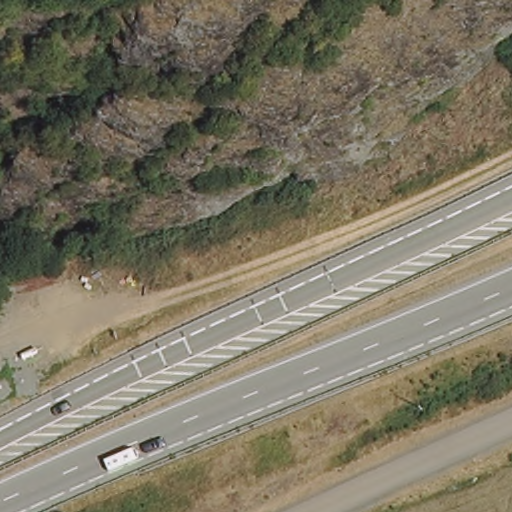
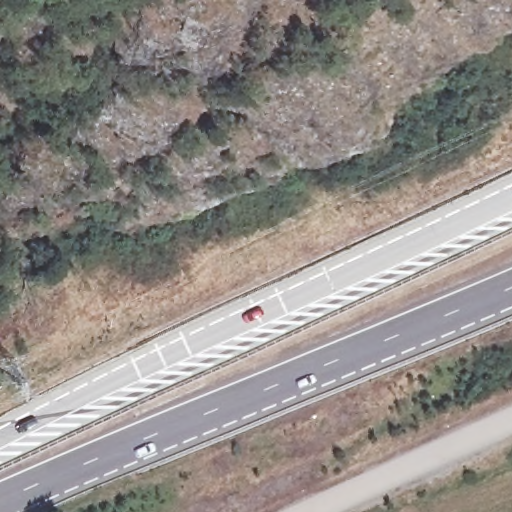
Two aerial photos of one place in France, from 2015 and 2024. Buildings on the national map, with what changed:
[]

